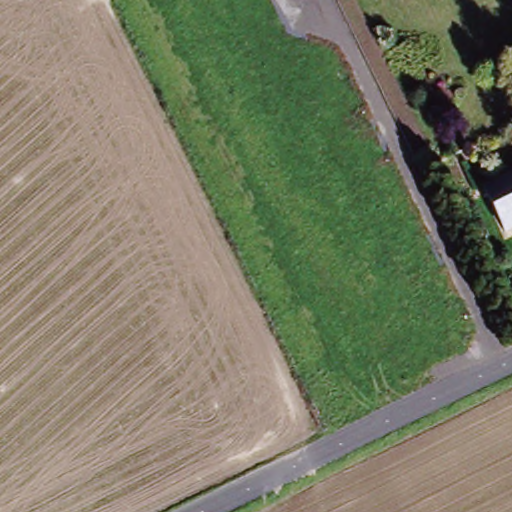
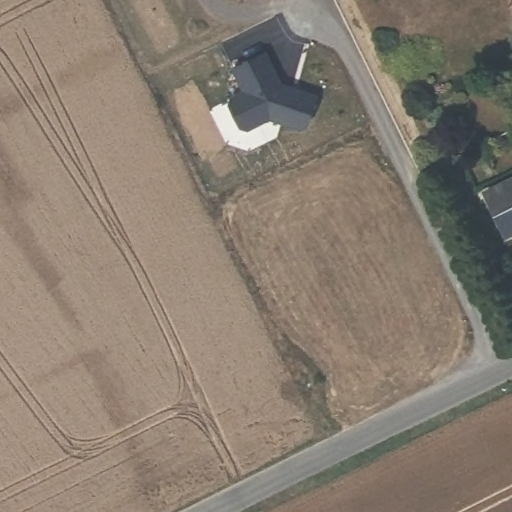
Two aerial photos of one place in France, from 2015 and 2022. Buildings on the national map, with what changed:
new [(306,126),(300,130),(269,119),(247,130),(240,128),(229,106),(231,99),(245,92),(233,70),(265,55),(272,69),(267,72),(272,81),(316,97),(306,126)]
new [(280,84),(272,81),(267,72),(272,69),(280,84)]
unchanged [(487,196),(512,184),(512,234),(508,236),(487,196)]

